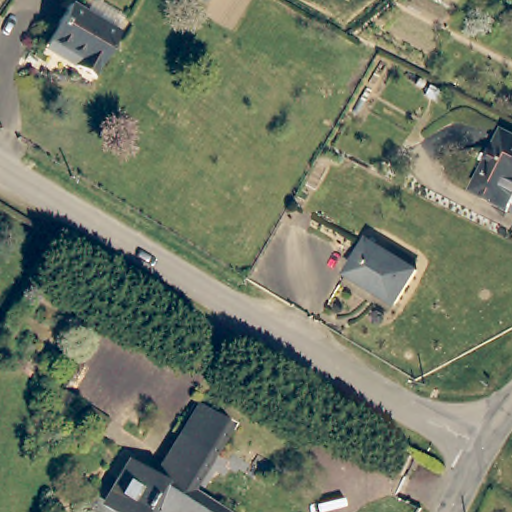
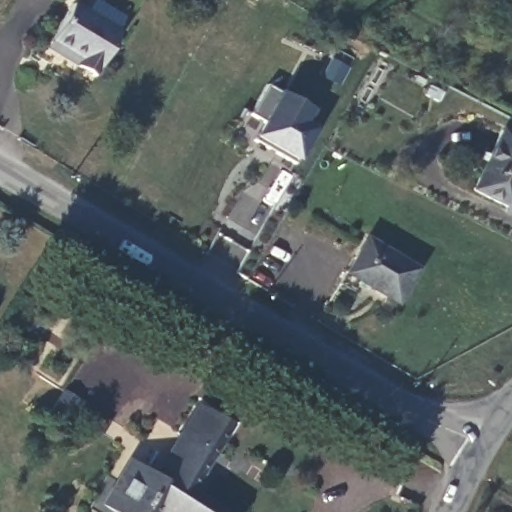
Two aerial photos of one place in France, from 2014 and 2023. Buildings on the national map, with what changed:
unchanged [(94,82),(72,71),(77,62),(47,47),(67,8),(84,17),(92,2),(123,20),(116,34),(118,35),(94,82)]
new [(254,137),(264,120),(253,115),(268,86),(281,92),(313,110),(306,122),(317,129),(297,161),(254,137)]
unchanged [(512,141),(512,205),(508,203),(505,210),(469,192),(499,135),(512,141)]
unchanged [(414,271),(393,306),(343,276),(364,241),(414,271)]
unchanged [(204,512),(101,512),(100,512),(108,500),(101,496),(116,472),(142,487),(189,411),(218,429),(185,483),(177,477),(169,491),(204,512)]

